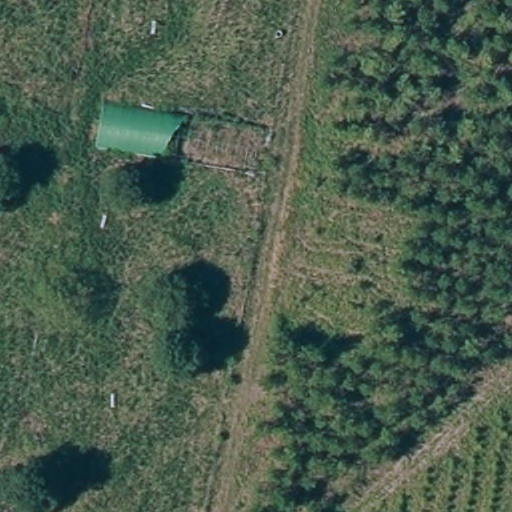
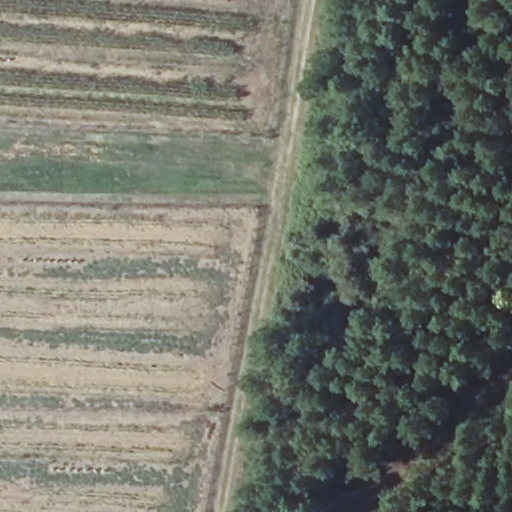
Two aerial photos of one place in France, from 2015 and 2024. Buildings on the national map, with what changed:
demolished [(177,120),(171,161),(104,150),(110,110),(177,120)]

